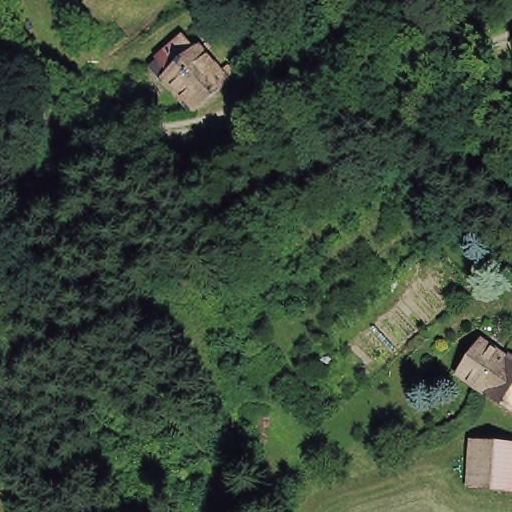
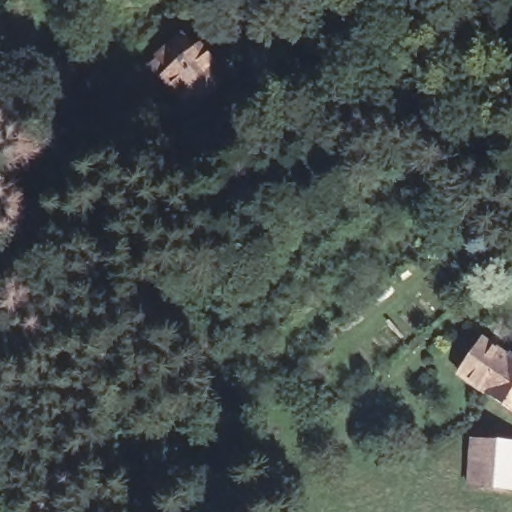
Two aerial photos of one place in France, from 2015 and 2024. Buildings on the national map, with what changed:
unchanged [(233,93),(198,121),(170,85),(163,90),(152,78),(163,69),(190,48),(200,62),(204,58),(233,93)]
unchanged [(459,383),(475,362),(483,350),(507,368),(512,362),(512,422),(484,401),(459,383)]
unchanged [(475,450),(512,454),(512,500),(470,495),(475,450)]

